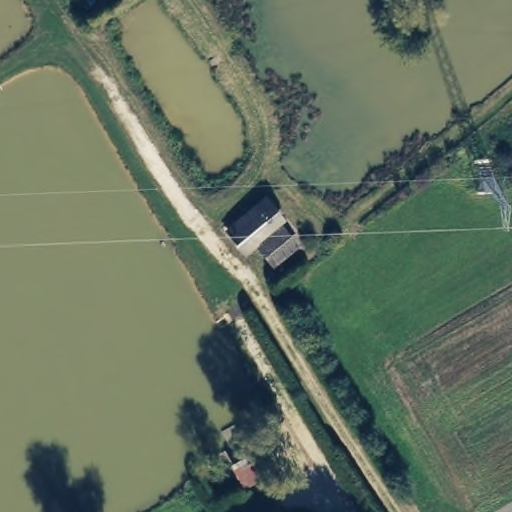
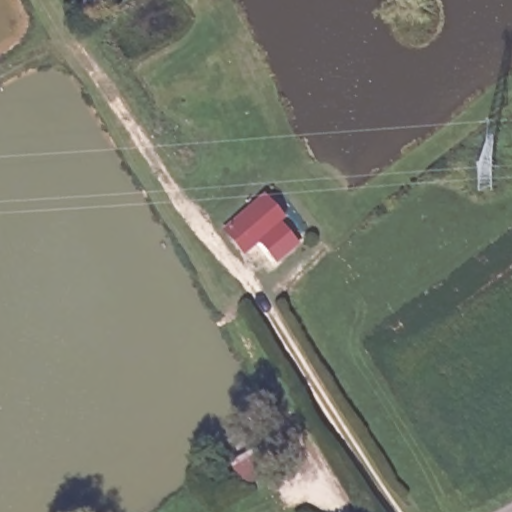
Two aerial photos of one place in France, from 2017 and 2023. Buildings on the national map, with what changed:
unchanged [(272,263),(258,244),(244,254),(222,226),(262,194),(285,217),(279,223),(297,244),(272,263)]
unchanged [(265,472),(244,482),(235,464),(254,452),(265,472)]

